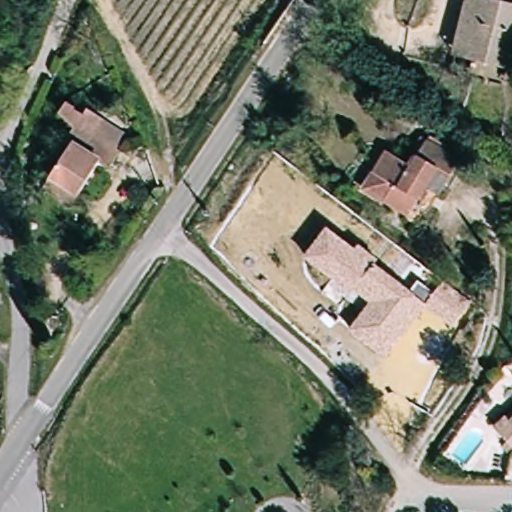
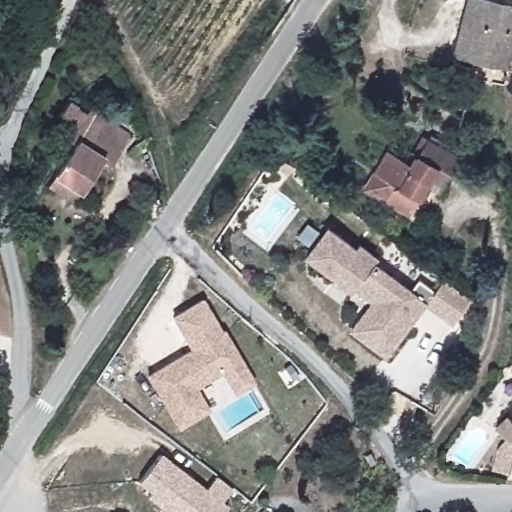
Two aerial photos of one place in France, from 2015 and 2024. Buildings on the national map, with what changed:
unchanged [(509,70),(465,57),(454,55),(467,0),(503,0),(512,3),(512,56),(509,70)]
unchanged [(48,192),(54,182),(74,150),(68,147),(77,133),(62,119),(69,107),(86,121),(90,115),(106,126),(132,143),(112,175),(101,169),(82,200),(75,210),(48,192)]
unchanged [(464,160),(449,180),(435,171),(416,157),(430,136),(464,160)]
unchanged [(410,167),(416,157),(435,171),(406,216),(379,198),(362,188),(375,170),(388,151),(410,167)]
unchanged [(361,242),(380,259),(375,264),(413,291),(419,281),(436,293),(446,281),(469,300),(452,324),(425,306),(387,355),(350,329),(370,302),(355,287),(350,292),(307,256),(330,227),(355,248),(361,242)]
new [(173,320),(203,300),(252,379),(233,390),(222,373),(196,389),(207,411),(178,428),(148,376),(192,351),(173,320)]
unchanged [(499,430),(510,417),(512,418),(512,441),(499,430)]
new [(222,501),(229,507),(225,512),(166,512),(146,496),(149,492),(137,483),(160,453),(204,488),(216,475),(232,489),(222,501)]

